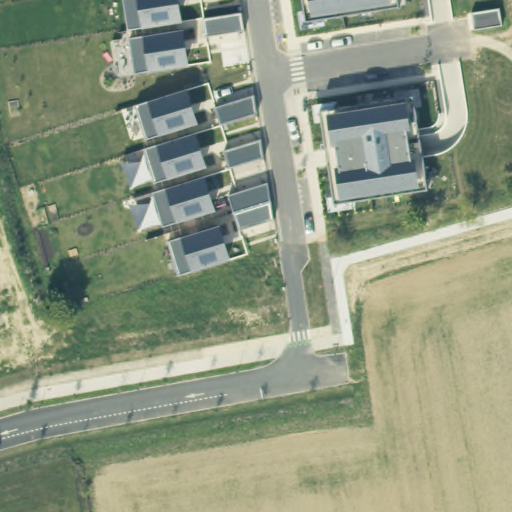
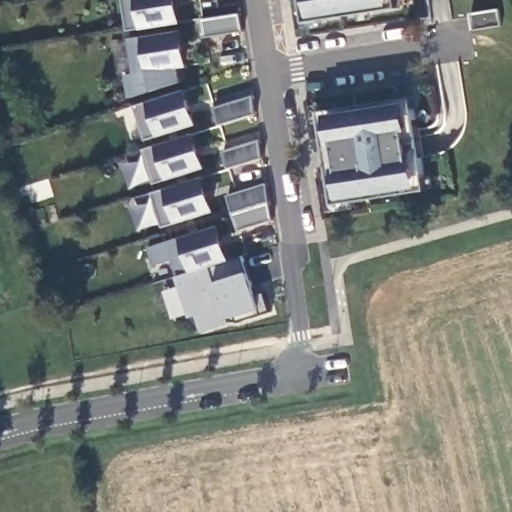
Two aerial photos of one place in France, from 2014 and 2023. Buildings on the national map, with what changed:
unchanged [(124,0),(178,0),(182,22),(140,29),(128,31),(124,0)]
unchanged [(398,7),(306,22),(302,0),(396,0),(398,7)]
new [(499,10),(501,27),(473,32),(470,14),(499,10)]
unchanged [(241,15),(244,32),(207,38),(204,21),(241,15)]
unchanged [(129,40),(143,38),(183,32),(187,65),(148,73),(134,73),(129,40)]
unchanged [(135,107),(148,102),(186,91),(197,124),(158,136),(145,140),(135,107)]
unchanged [(253,98),(255,115),(220,125),(217,109),(253,98)]
unchanged [(426,190),(334,203),(320,112),(413,98),(426,190)]
unchanged [(143,151),(158,147),(195,135),(205,167),(167,179),(153,184),(143,151)]
unchanged [(260,142),(262,158),(229,169),(224,152),(260,142)]
unchanged [(152,195),(166,190),(204,178),(215,211),(175,224),(163,227),(152,195)]
unchanged [(268,185),(273,220),(239,230),(234,215),(229,197),(268,185)]
unchanged [(169,244),(183,238),(219,227),(230,260),(192,272),(179,276),(169,244)]
new [(192,272),(230,260),(244,255),(252,274),(258,296),(264,292),(270,312),(202,333),(198,318),(191,320),(190,316),(174,320),(164,291),(183,287),(179,276),(192,272)]

